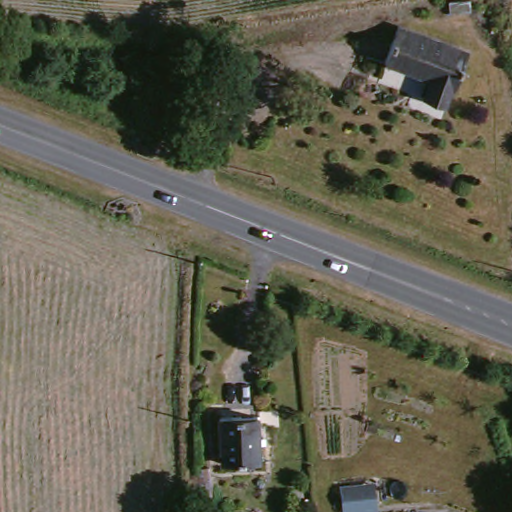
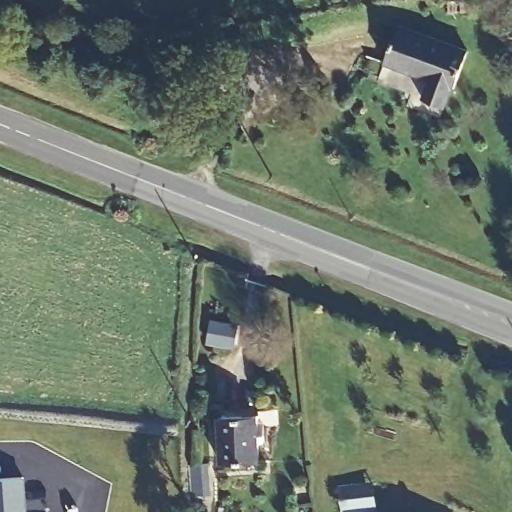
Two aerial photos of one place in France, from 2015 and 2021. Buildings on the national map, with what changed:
unchanged [(462,52),(452,85),(447,83),(441,101),(415,93),(421,75),(379,63),(389,31),(462,52)]
unchanged [(251,411),(256,457),(216,461),(211,415),(251,411)]
new [(26,512),(0,512),(0,480),(23,478),(26,512)]
unchanged [(378,512),(344,512),(341,491),(375,486),(378,512)]

